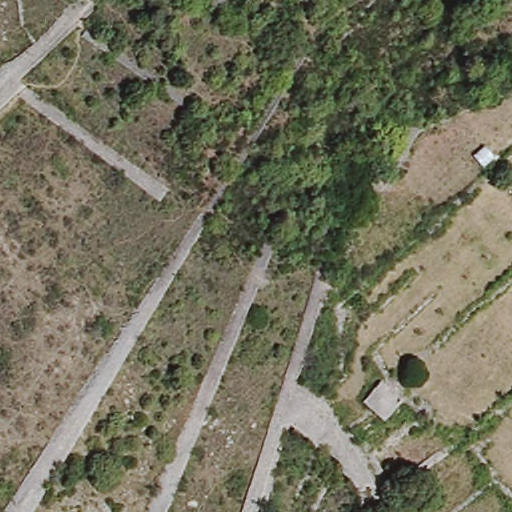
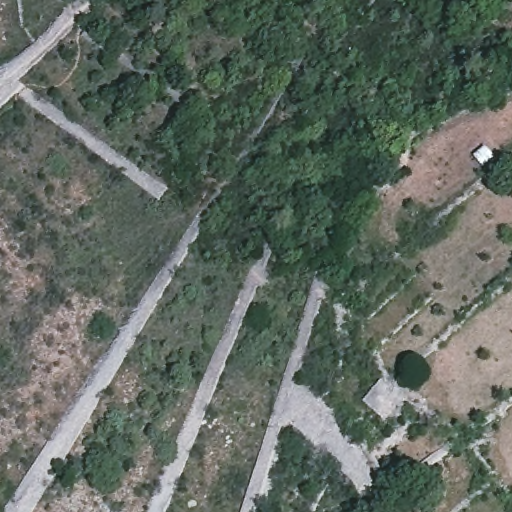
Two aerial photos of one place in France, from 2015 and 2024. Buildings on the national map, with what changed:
unchanged [(402,393),(382,418),(360,395),(378,377),(402,393)]

